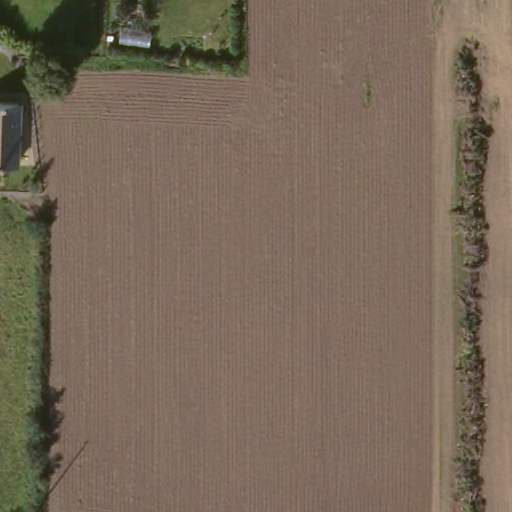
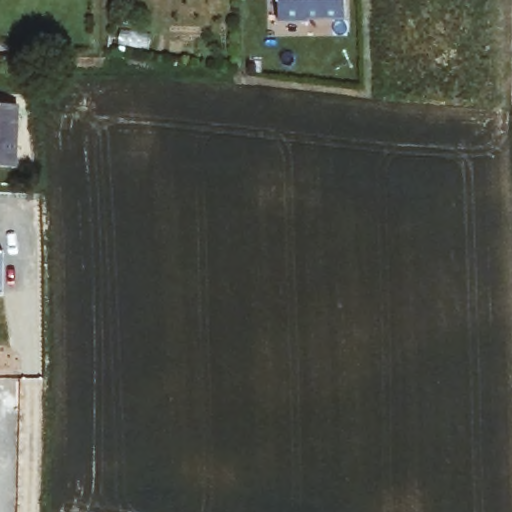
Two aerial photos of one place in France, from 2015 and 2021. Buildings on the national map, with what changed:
new [(345,17),(308,19),(308,21),(278,22),(278,0),(345,0),(345,17)]
unchanged [(17,103),(14,171),(0,171),(0,103),(17,103)]

